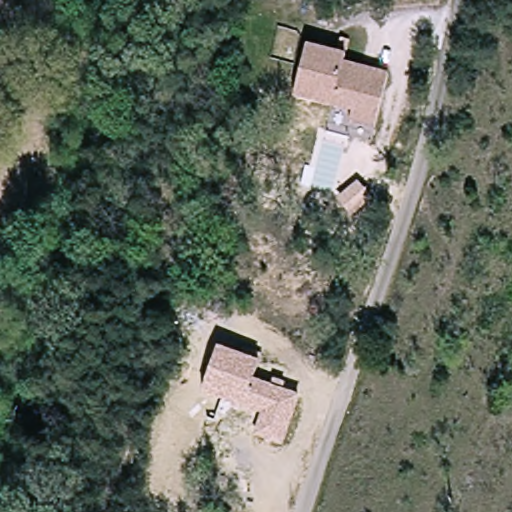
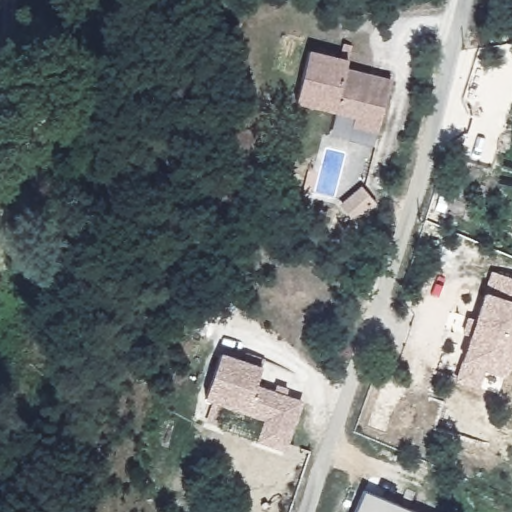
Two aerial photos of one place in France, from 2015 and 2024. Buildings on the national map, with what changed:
unchanged [(302,50),(341,60),(339,69),(382,79),(371,129),(348,124),(350,114),(290,100),(302,50)]
new [(483,369),(478,385),(457,377),(494,273),(512,279),(512,356),(505,377),(483,369)]
unchanged [(254,385),(272,391),(274,383),(287,388),(285,395),(304,402),(285,451),(255,441),(260,419),(203,399),(220,351),(262,368),(254,385)]
new [(413,512),(353,512),(362,491),(413,512)]

